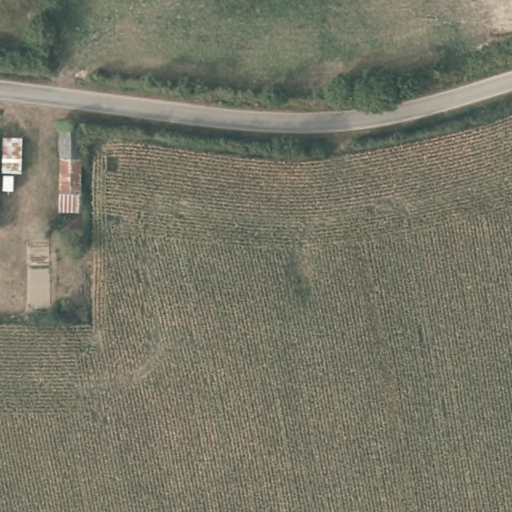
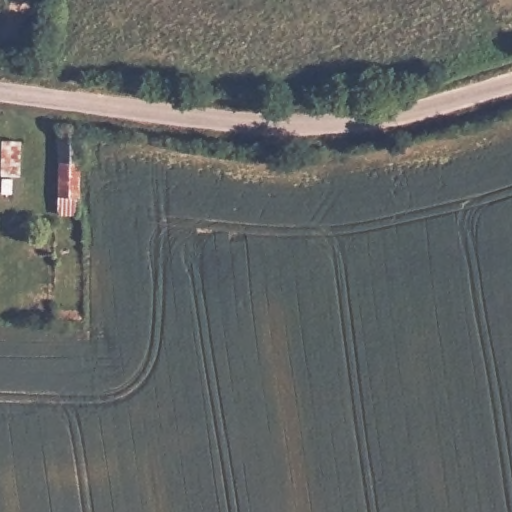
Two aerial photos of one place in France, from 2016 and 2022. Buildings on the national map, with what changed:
unchanged [(57,191),(62,124),(85,125),(82,212),(57,212),(57,191)]
unchanged [(3,136),(23,135),(26,175),(4,174),(3,136)]

